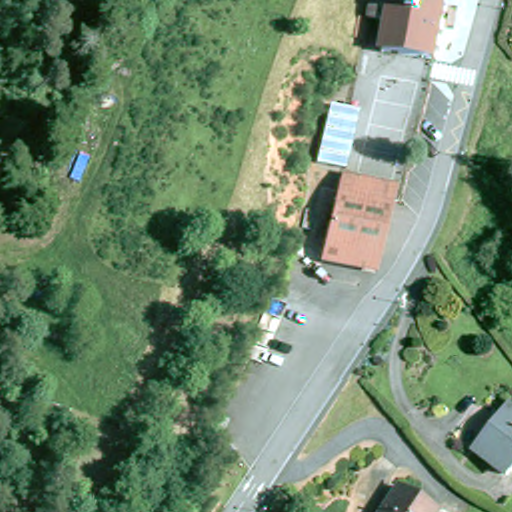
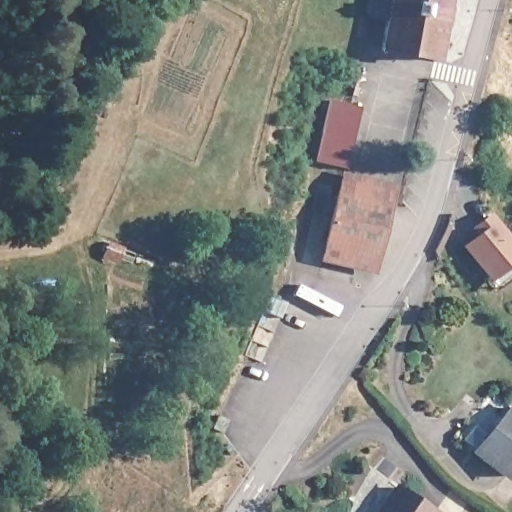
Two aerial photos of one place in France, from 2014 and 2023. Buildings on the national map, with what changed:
unchanged [(442,65),(388,55),(394,24),(376,21),(380,0),(455,0),(442,65)]
unchanged [(367,44),(361,43),(365,23),(372,25),(367,44)]
unchanged [(349,163),(320,159),(330,99),(362,103),(349,163)]
unchanged [(346,172),(398,185),(394,202),(381,256),(328,243),(341,189),(346,172)]
new [(462,246),(475,236),(470,228),(491,214),(512,243),(512,268),(491,286),(462,246)]
unchanged [(376,275),(324,262),(328,243),(381,256),(376,275)]
unchanged [(509,477),(476,452),(512,407),(512,408),(512,473),(509,477)]
unchanged [(436,509),(434,512),(381,512),(397,485),(436,509)]

